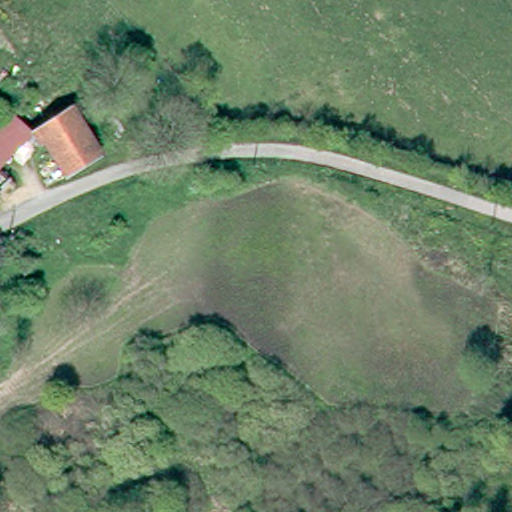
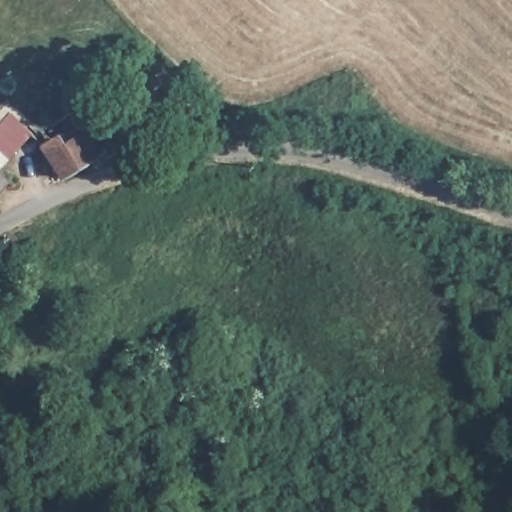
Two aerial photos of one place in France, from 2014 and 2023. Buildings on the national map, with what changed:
unchanged [(13,110),(30,129),(0,159),(0,124),(13,110)]
unchanged [(83,123),(101,153),(67,174),(46,143),(83,123)]
unchanged [(11,176),(0,188),(0,165),(11,176)]

